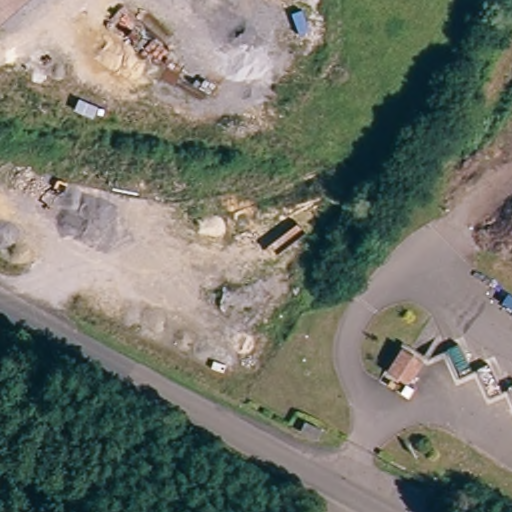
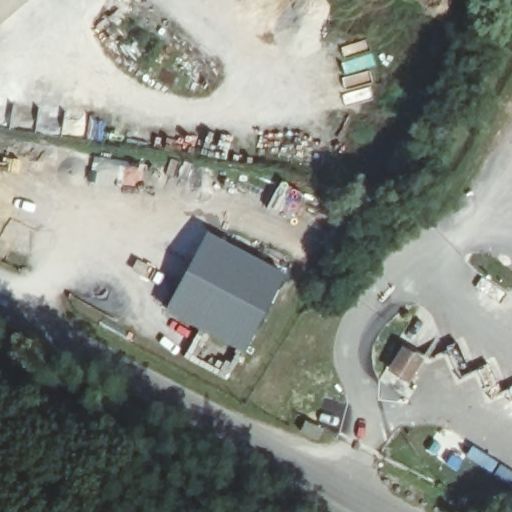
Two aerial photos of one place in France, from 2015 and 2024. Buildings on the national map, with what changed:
unchanged [(0,0),(28,0),(0,24),(0,0)]
new [(206,230),(288,273),(245,354),(162,312),(206,230)]
unchanged [(392,372),(405,351),(422,362),(410,383),(392,372)]
unchanged [(302,441),(308,429),(323,437),(318,449),(302,441)]

